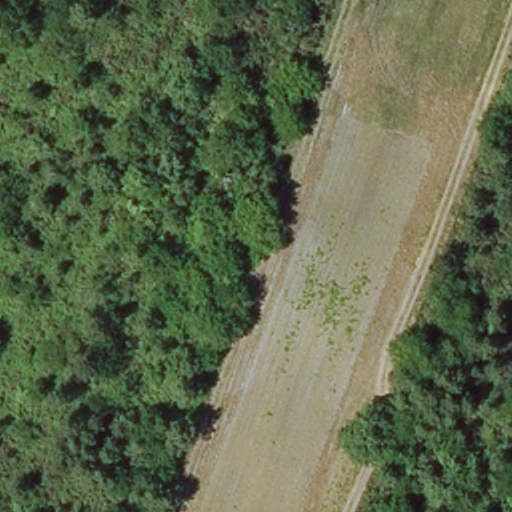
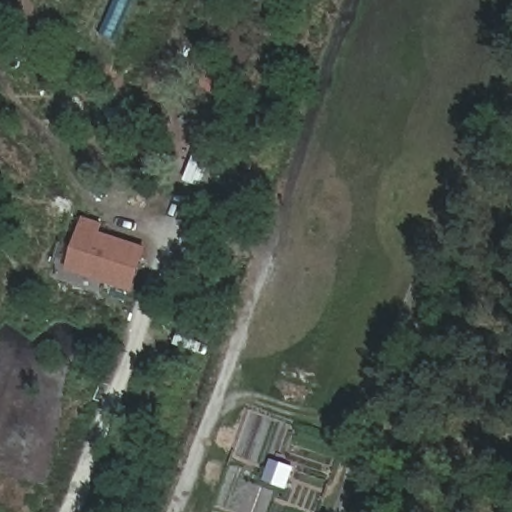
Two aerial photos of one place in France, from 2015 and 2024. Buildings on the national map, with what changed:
new [(147,246),(132,290),(65,267),(82,216),(104,223),(101,231),(147,246)]

